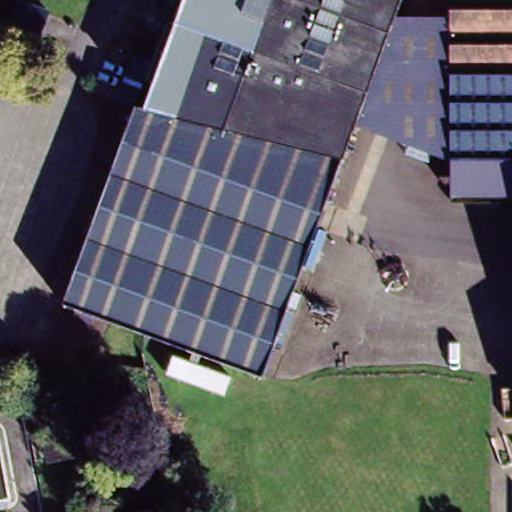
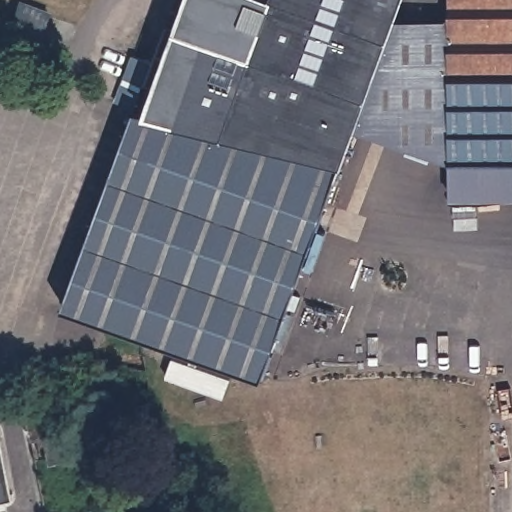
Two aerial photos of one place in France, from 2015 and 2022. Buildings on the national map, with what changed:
unchanged [(192,152),(165,145),(129,136),(139,111),(155,66),(180,0),(402,0),(394,22),(365,104),(355,129),(334,188),(284,176),(192,152)]
unchanged [(450,204),(451,171),(451,168),(452,25),(452,0),(512,0),(512,204),(450,204)]
unchanged [(45,13),(35,38),(4,26),(13,2),(45,13)]
unchanged [(452,25),(451,168),(451,171),(355,129),(365,104),(394,22),(452,25)]
unchanged [(135,58),(155,66),(139,111),(117,105),(131,68),(135,58)]
unchanged [(264,381),(138,335),(110,187),(129,136),(165,145),(192,152),(284,176),(334,188),(264,381)]
unchanged [(65,309),(110,187),(138,335),(65,309)]
unchanged [(64,396),(75,458),(52,462),(47,436),(33,438),(27,403),(64,396)]
unchanged [(167,485),(160,487),(154,458),(162,456),(167,485)]
unchanged [(0,501),(0,465),(7,499),(0,501)]

